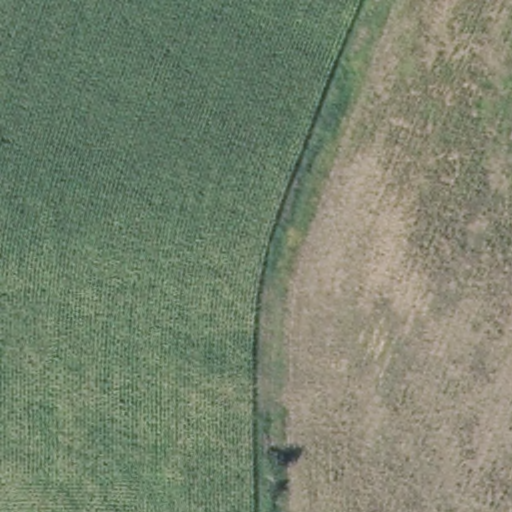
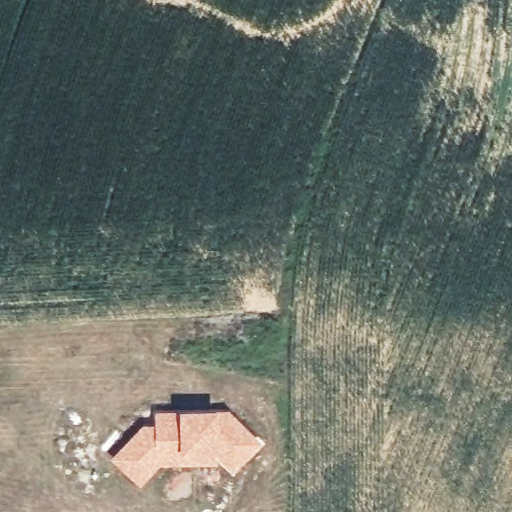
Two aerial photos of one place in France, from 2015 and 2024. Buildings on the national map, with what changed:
new [(169,427),(169,413),(228,412),(257,442),(234,468),(216,453),(216,465),(158,463),(141,483),(112,457),(139,429),(169,427)]

